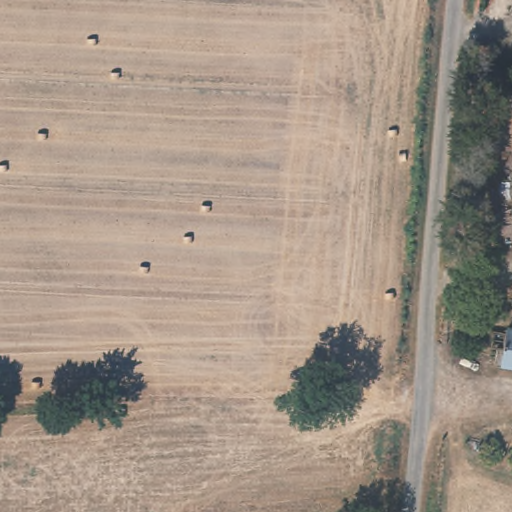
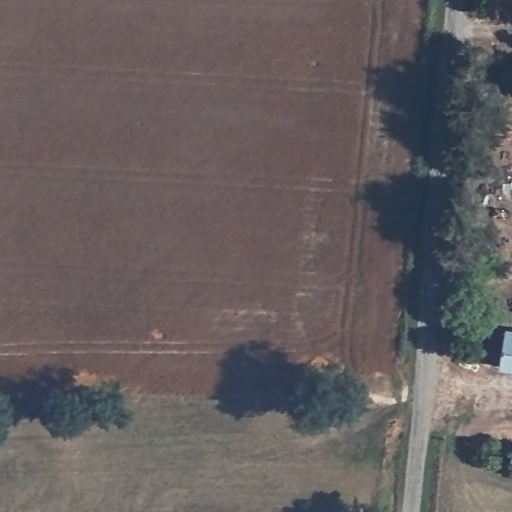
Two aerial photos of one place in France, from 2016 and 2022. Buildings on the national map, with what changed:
unchanged [(493,368),(497,350),(477,345),(480,331),(500,336),(502,326),(512,328),(512,371),(493,368)]

